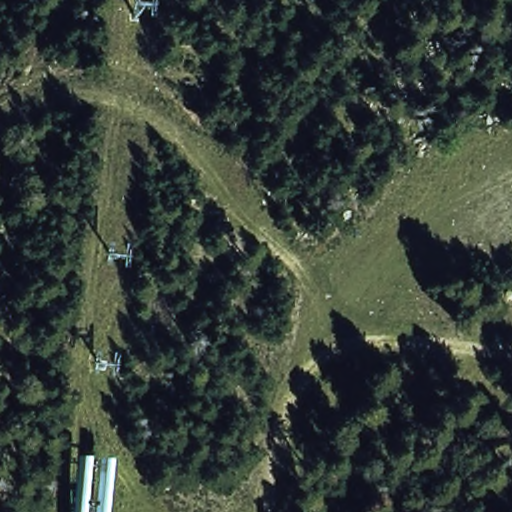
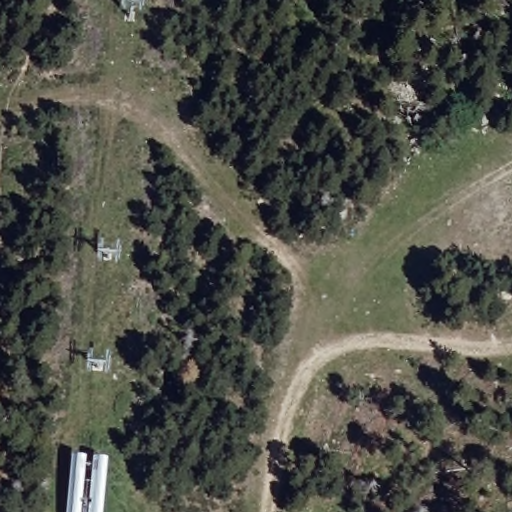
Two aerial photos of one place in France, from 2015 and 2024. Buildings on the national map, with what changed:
unchanged [(111,460),(108,512),(68,512),(73,460),(111,460)]

